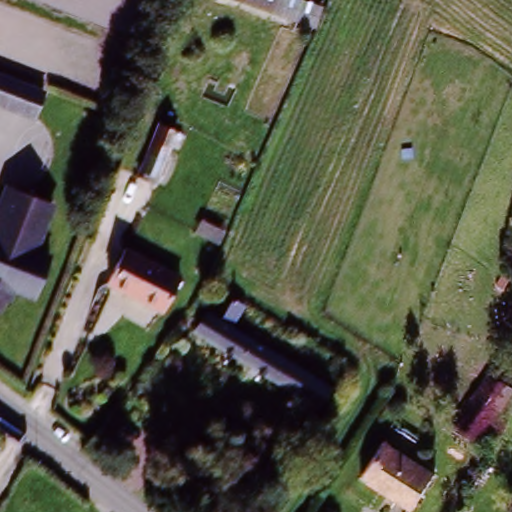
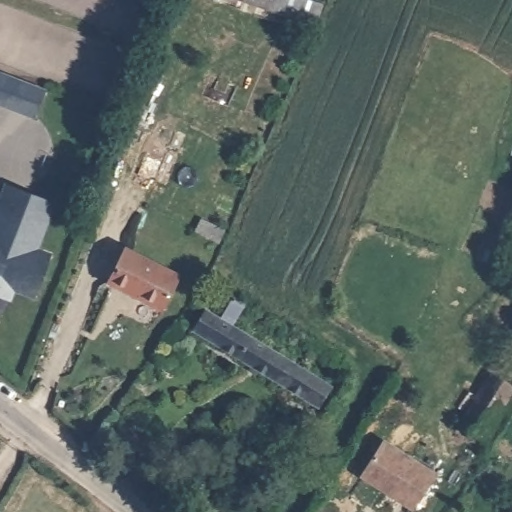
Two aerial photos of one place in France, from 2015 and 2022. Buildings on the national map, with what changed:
unchanged [(245,0),(300,0),(319,9),(311,28),(245,0)]
unchanged [(37,110),(0,94),(0,73),(45,90),(37,110)]
unchanged [(185,129),(163,185),(135,174),(161,120),(185,129)]
unchanged [(0,294),(0,225),(15,186),(60,205),(42,251),(53,256),(39,295),(17,286),(14,299),(0,294)]
unchanged [(165,311),(110,283),(127,247),(183,276),(165,311)]
unchanged [(317,407),(193,333),(209,306),(224,315),(237,290),(253,301),(241,325),(333,382),(317,407)]
unchanged [(458,426),(497,373),(512,384),(512,392),(475,440),(458,426)]
unchanged [(118,397),(142,415),(125,438),(101,420),(118,397)]
unchanged [(412,509),(365,474),(386,446),(432,481),(412,509)]

